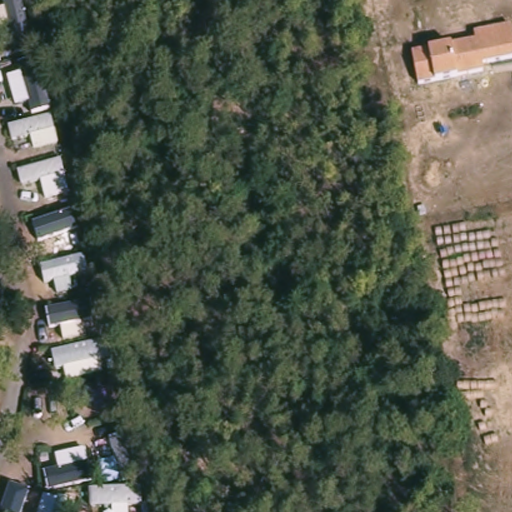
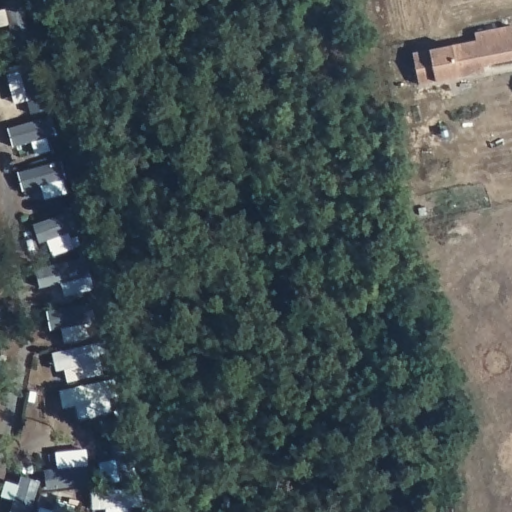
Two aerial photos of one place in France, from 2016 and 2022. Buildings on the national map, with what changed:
unchanged [(486,73),(421,86),(415,55),(478,42),(477,34),(512,27),(512,60),(485,66),(486,73)]

